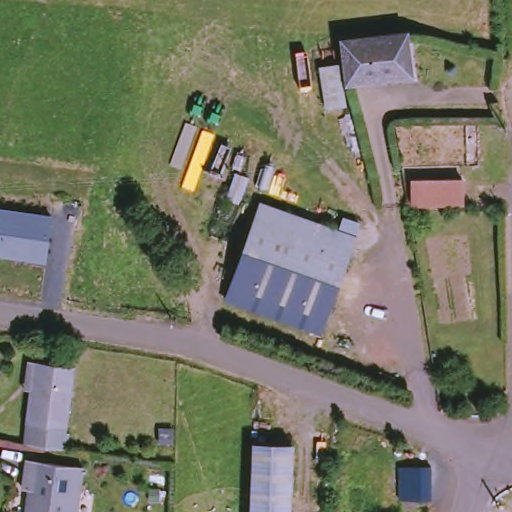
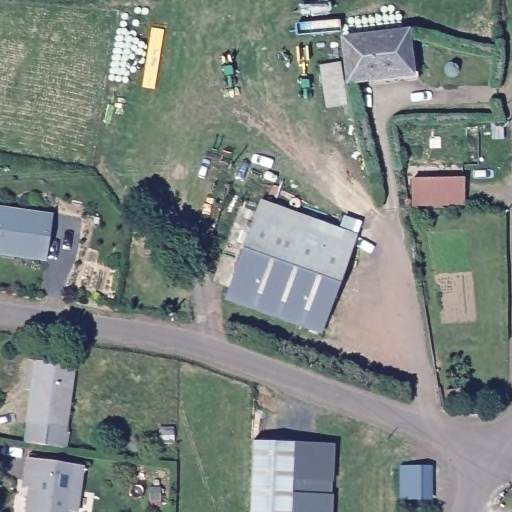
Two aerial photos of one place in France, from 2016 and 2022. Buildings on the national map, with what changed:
unchanged [(405,29),(410,69),(345,77),(340,37),(405,29)]
unchanged [(315,64),(336,60),(341,101),(319,103),(315,64)]
unchanged [(409,180),(457,179),(457,202),(410,204),(409,180)]
unchanged [(255,199),(340,226),(343,216),(354,220),(350,232),(352,232),(316,328),(222,295),(255,199)]
unchanged [(45,263),(0,257),(0,207),(52,215),(45,263)]
unchanged [(30,360),(67,365),(61,426),(67,427),(64,447),(19,441),(30,360)]
unchanged [(292,441),(291,512),(247,512),(247,441),(292,441)]
new [(335,443),(333,512),(291,512),(292,441),(335,443)]
unchanged [(27,488),(20,487),(25,458),(82,466),(78,492),(75,512),(24,512),(27,488)]
unchanged [(431,500),(397,500),(398,466),(430,466),(431,500)]

